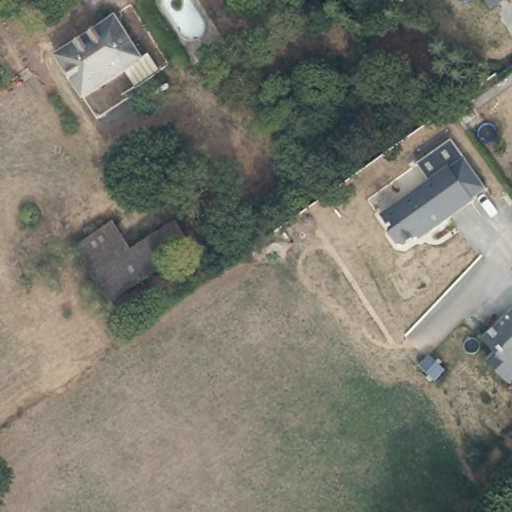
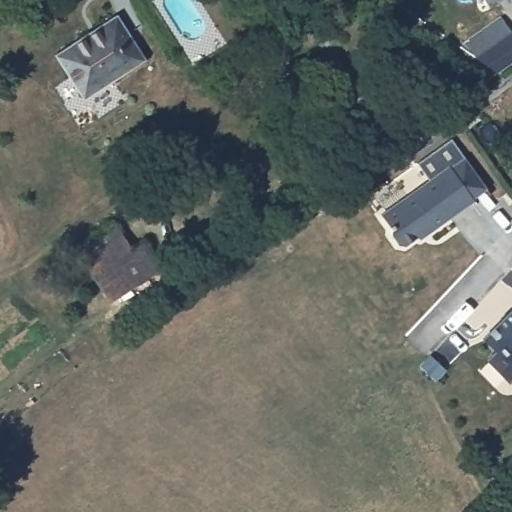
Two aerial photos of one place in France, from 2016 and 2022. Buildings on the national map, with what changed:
unchanged [(114,16),(140,58),(147,54),(160,74),(137,89),(124,69),(81,96),(54,54),(114,16)]
new [(500,16),(512,33),(512,63),(498,72),(475,57),(465,41),(500,16)]
unchanged [(446,162),(471,197),(428,229),(426,226),(401,244),(396,242),(388,231),(390,227),(380,212),(446,162)]
unchanged [(135,249),(180,219),(197,247),(116,302),(96,274),(135,249)]
unchanged [(78,244),(116,220),(135,249),(96,274),(78,244)]
unchanged [(506,379),(485,358),(493,349),(480,336),(512,305),(512,373),(506,379)]

